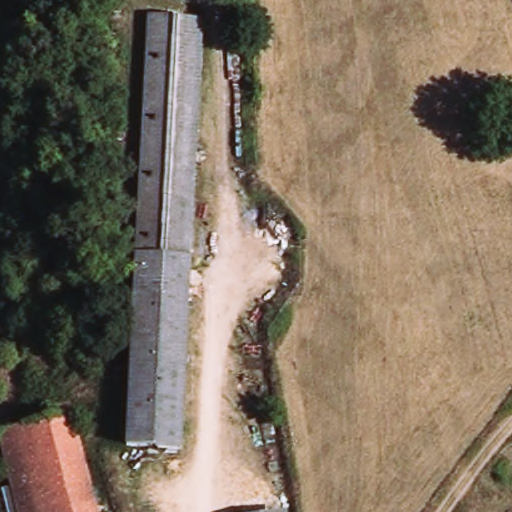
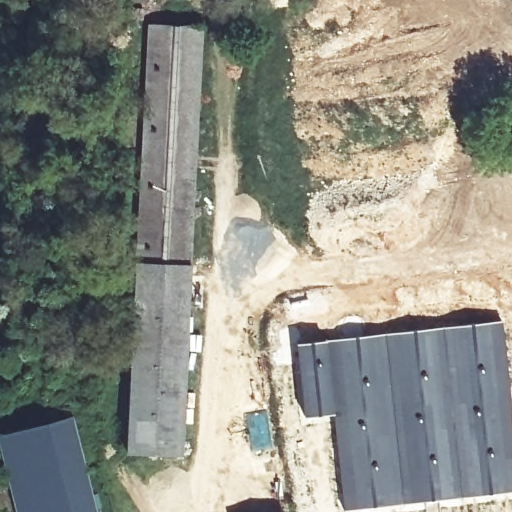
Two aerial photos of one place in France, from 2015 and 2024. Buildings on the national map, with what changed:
unchanged [(125,437),(146,22),(199,25),(178,454),(129,452),(125,451),(125,437)]
new [(512,396),(512,492),(343,511),(337,473),(330,414),(303,417),(299,398),(294,343),(503,320),(512,396)]
unchanged [(84,483),(93,512),(15,512),(0,460),(0,434),(4,434),(34,425),(70,418),(84,483)]

